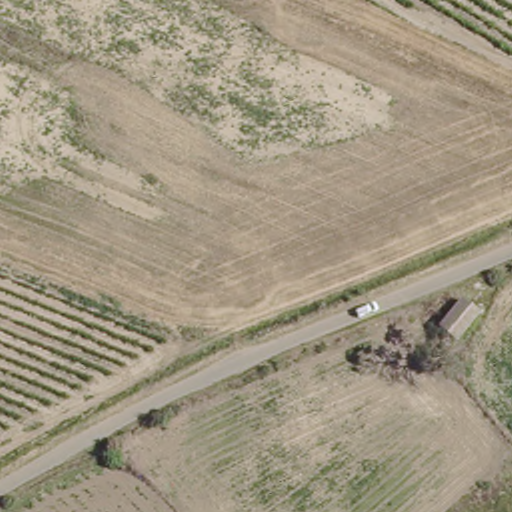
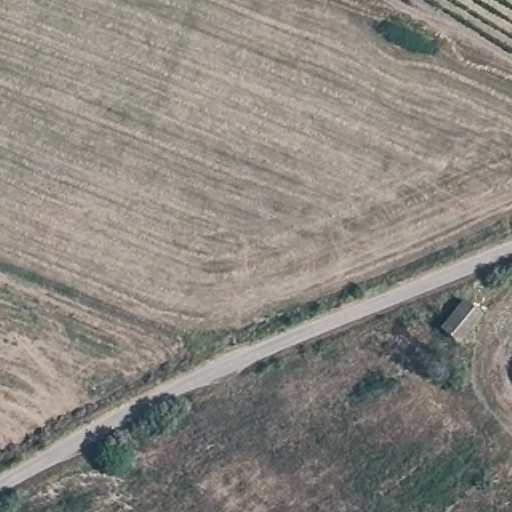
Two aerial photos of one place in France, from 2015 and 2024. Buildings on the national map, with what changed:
unchanged [(453,339),(438,326),(460,299),(475,312),(453,339)]

